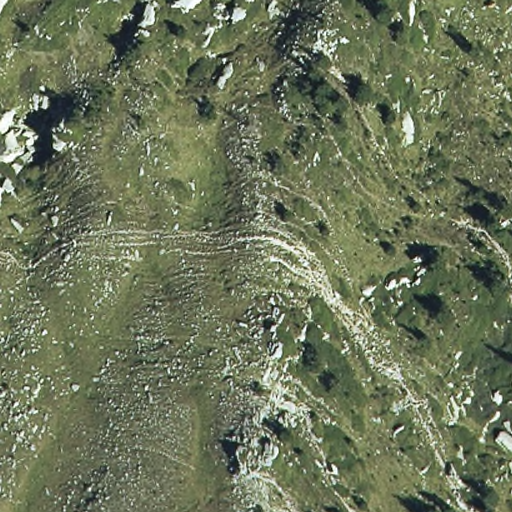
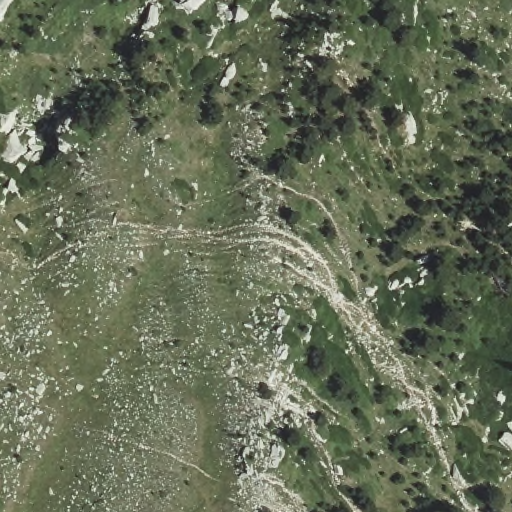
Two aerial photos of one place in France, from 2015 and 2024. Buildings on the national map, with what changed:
[]

